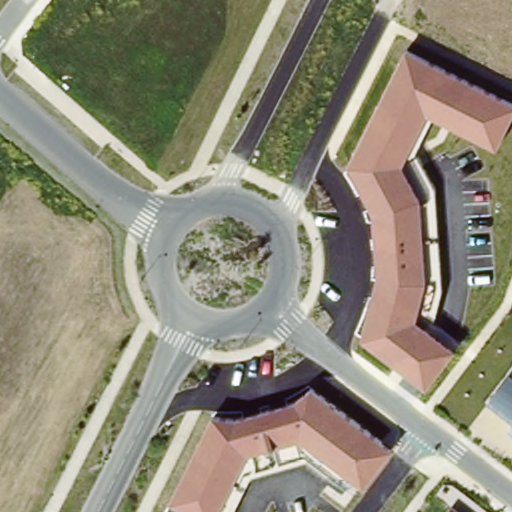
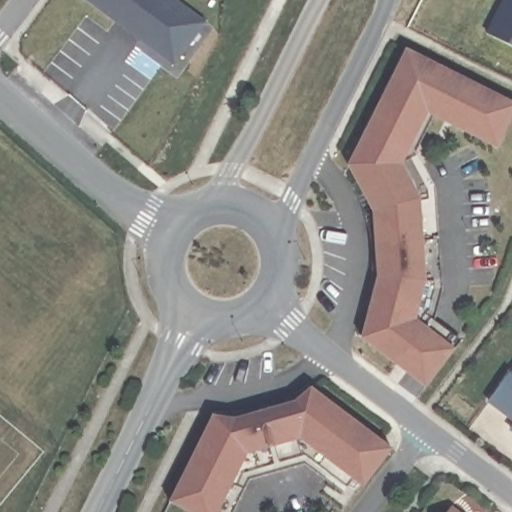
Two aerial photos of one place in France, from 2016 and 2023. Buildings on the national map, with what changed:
new [(173,65),(134,35),(140,27),(128,19),(122,26),(87,0),(176,0),(206,22),(173,65)]
new [(505,7),(509,0),(512,0),(512,46),(487,34),(501,5),(505,7)]
unchanged [(362,340),(380,277),(373,211),(349,166),(406,48),(512,101),(512,121),(499,148),(432,115),(417,150),(437,185),(444,286),(432,328),(457,349),(427,387),(362,340)]
unchanged [(512,369),(512,434),(506,430),(511,425),(487,404),(512,369)]
unchanged [(170,505),(213,415),(239,418),(294,403),(312,387),(395,450),(365,489),(355,481),(349,488),(308,459),(252,476),(234,512),(182,512),(170,505)]
unchanged [(452,506),(460,512),(447,512),(452,506)]

